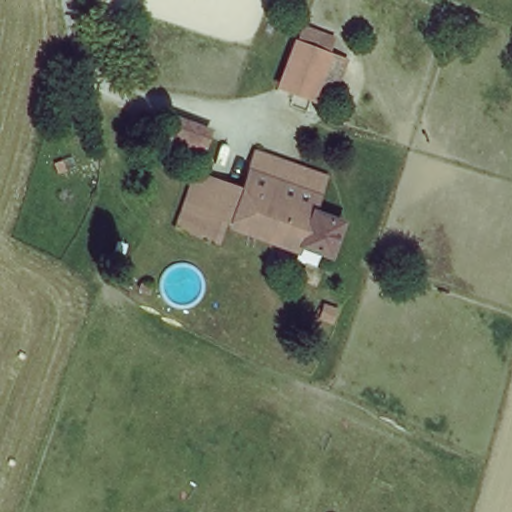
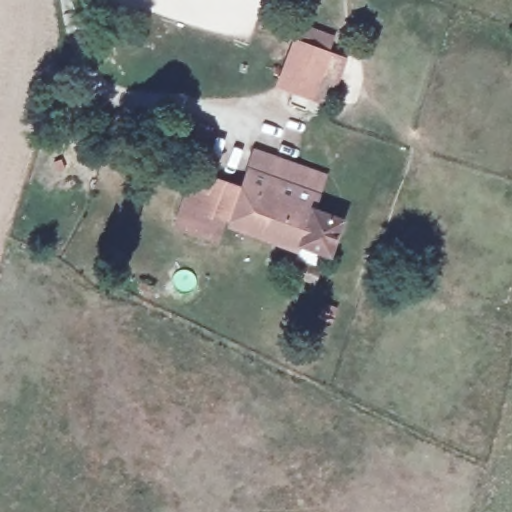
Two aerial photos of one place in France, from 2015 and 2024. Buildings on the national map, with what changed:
unchanged [(293,40),(329,54),(310,98),(277,85),(293,40)]
unchanged [(307,213),(335,222),(324,256),(215,220),(208,242),(170,230),(189,176),(237,193),(245,171),(250,155),(290,169),(320,178),(307,213)]
unchanged [(302,268),(315,271),(312,285),(298,280),(302,268)]

